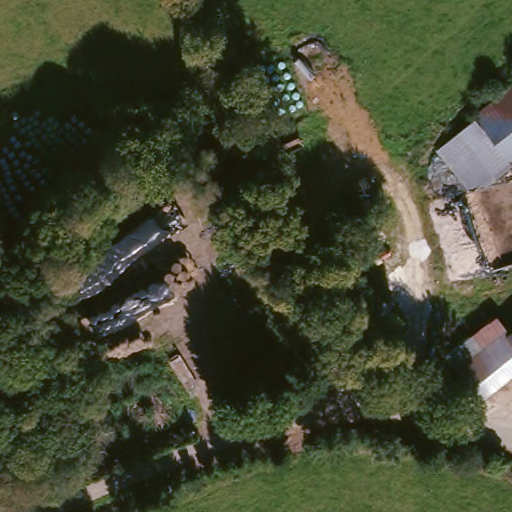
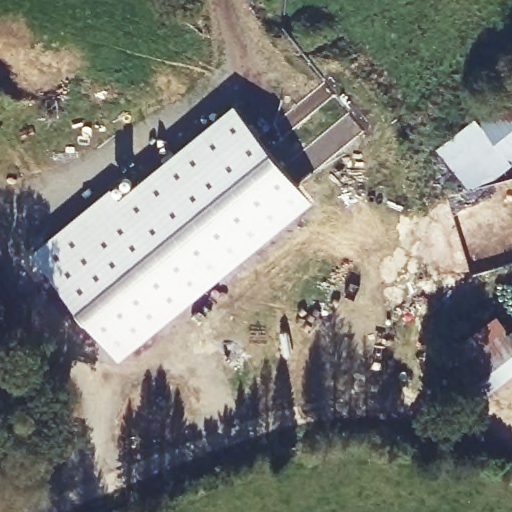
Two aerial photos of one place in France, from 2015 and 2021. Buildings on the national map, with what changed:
unchanged [(512,82),(512,161),(473,113),(512,82)]
new [(233,110),(249,129),(134,224),(118,205),(233,110)]
unchanged [(512,182),(469,187),(435,148),(473,113),(512,161),(512,182)]
new [(108,194),(118,205),(134,224),(249,129),(298,188),(105,347),(31,257),(108,194)]
new [(298,188),(312,205),(120,364),(105,347),(298,188)]
unchanged [(503,338),(487,351),(506,376),(476,399),(443,359),(496,317),(510,333),(503,338)]
unchanged [(512,372),(506,376),(487,351),(512,331),(512,372)]

